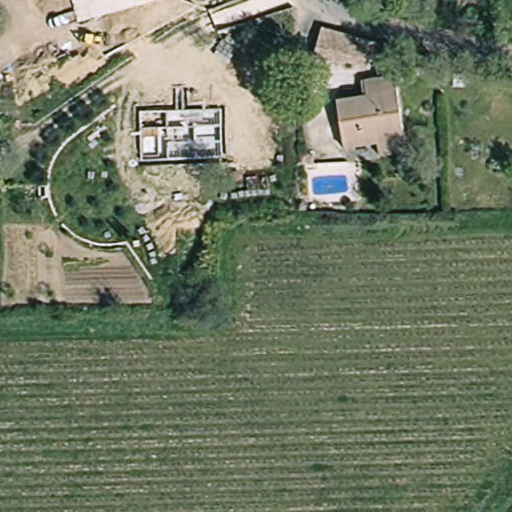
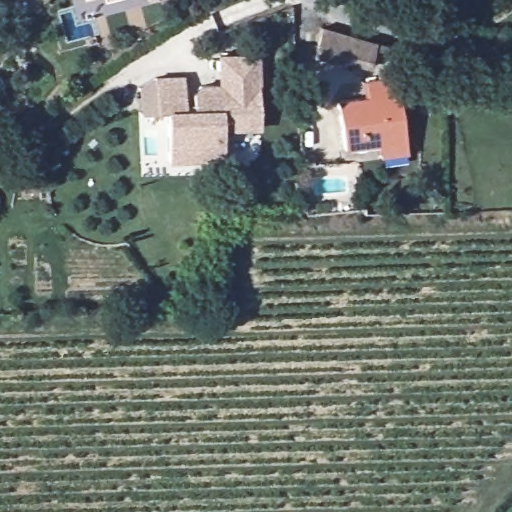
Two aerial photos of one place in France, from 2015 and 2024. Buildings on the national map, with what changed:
unchanged [(326,36),(376,47),(373,63),(323,52),(326,36)]
new [(138,86),(156,77),(183,76),(183,107),(193,107),(192,93),(201,84),(218,83),(216,54),(256,52),(259,128),(221,130),(221,158),(168,161),(167,111),(138,112),(138,86)]
unchanged [(381,159),(379,146),(343,152),(333,103),(366,98),(363,81),(394,76),(407,141),(409,154),(381,159)]

